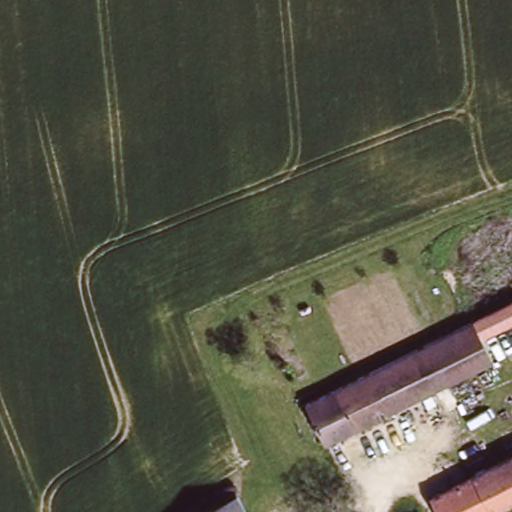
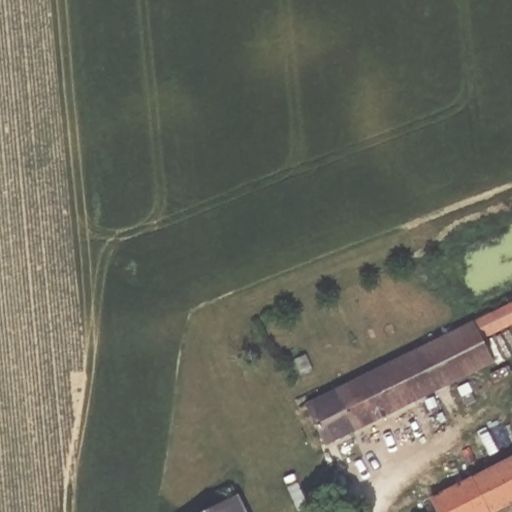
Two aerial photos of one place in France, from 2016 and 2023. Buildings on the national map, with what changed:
unchanged [(512,322),(484,336),(495,361),(331,443),(311,403),(512,302),(512,322)]
unchanged [(512,502),(493,512),(444,512),(435,497),(512,458),(512,502)]
unchanged [(247,512),(200,512),(238,493),(247,512)]
unchanged [(421,512),(408,512),(418,507),(421,512)]

